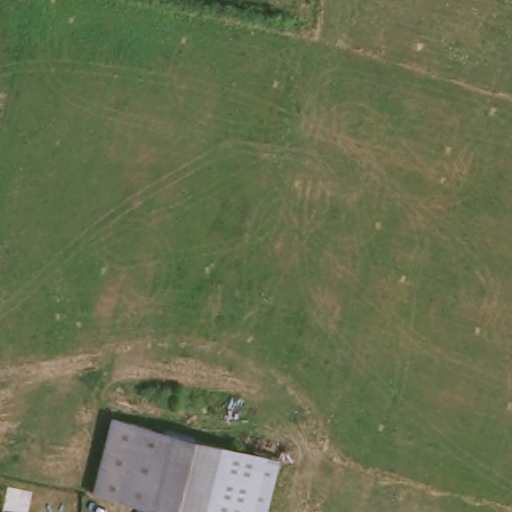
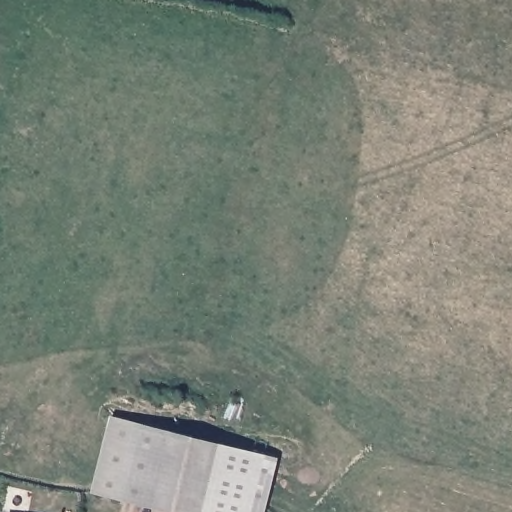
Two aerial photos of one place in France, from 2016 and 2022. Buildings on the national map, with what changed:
unchanged [(264,451),(250,512),(197,512),(108,490),(123,419),(264,451)]

